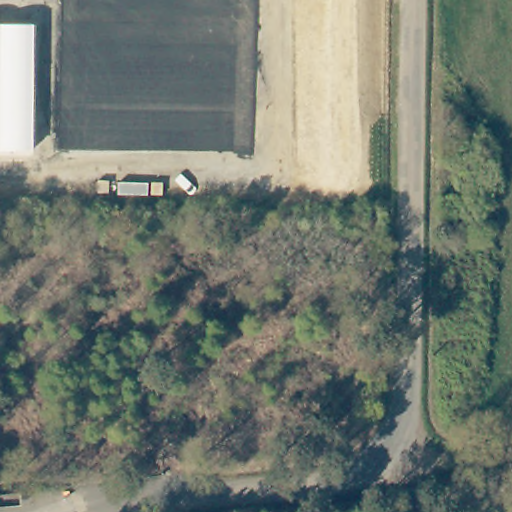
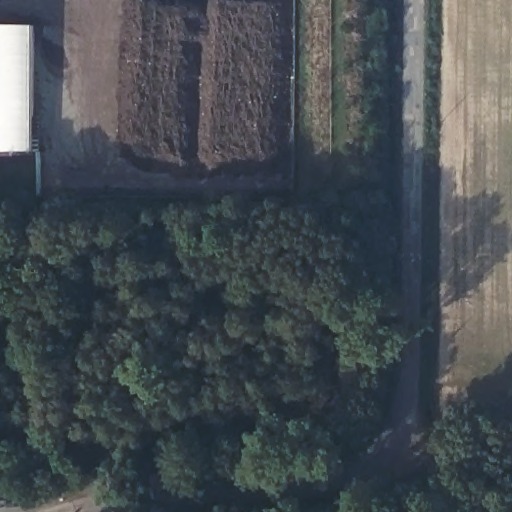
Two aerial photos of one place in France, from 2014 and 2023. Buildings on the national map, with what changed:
unchanged [(0,157),(0,25),(34,25),(34,157),(0,157)]

